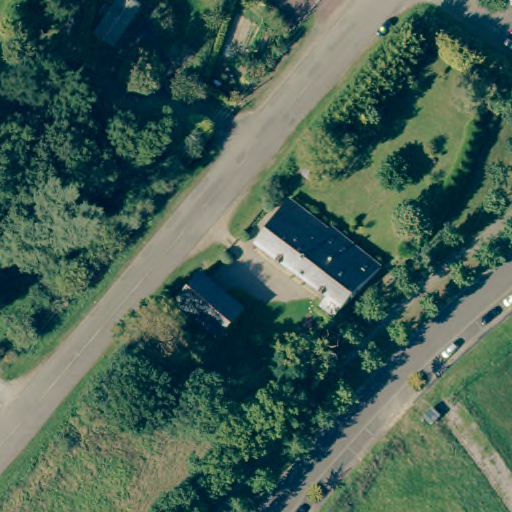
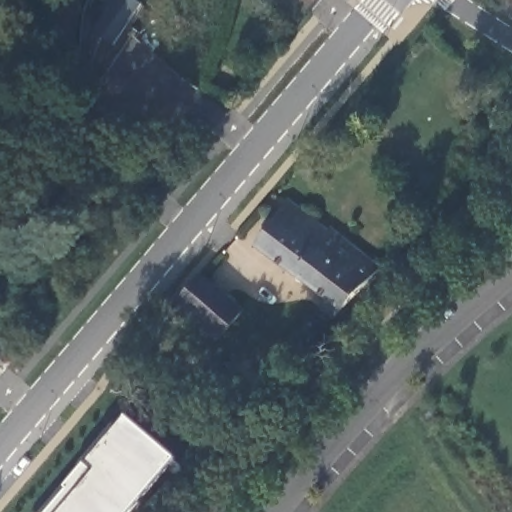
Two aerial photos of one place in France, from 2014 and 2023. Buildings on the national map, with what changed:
unchanged [(111,41),(92,29),(112,0),(132,0),(137,4),(111,41)]
unchanged [(320,172),(318,178),(315,182),(310,183),(305,183),(300,180),(298,175),(300,167),(305,163),(310,161),(314,163),(318,166),(320,172)]
unchanged [(330,320),(315,307),(321,298),(252,242),(288,198),(305,212),(324,227),(330,227),(378,267),(330,320)]
unchanged [(242,310),(219,339),(175,304),(199,276),(242,310)]
new [(68,490),(65,487),(129,416),(177,456),(130,512),(49,512),(68,490)]

